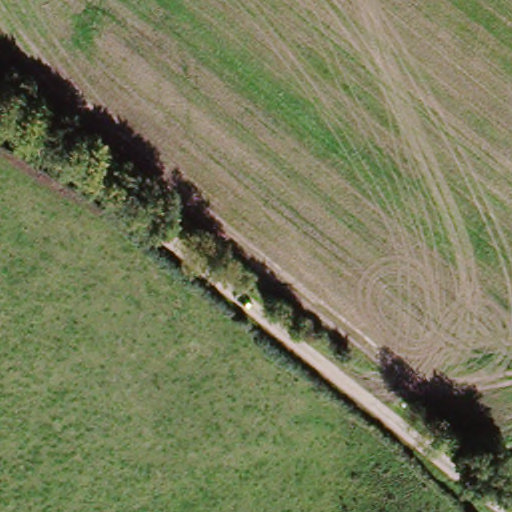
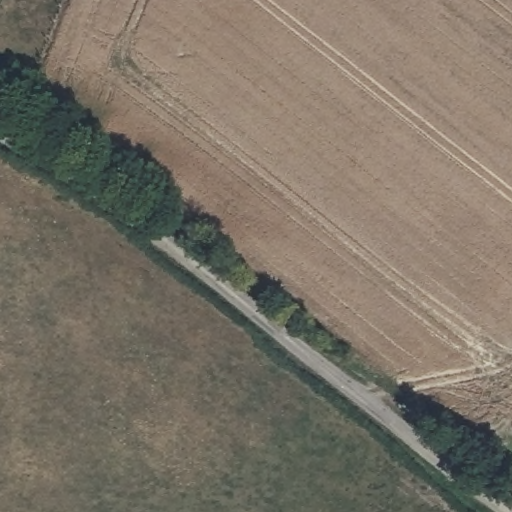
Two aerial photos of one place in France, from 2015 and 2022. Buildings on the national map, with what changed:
[]

